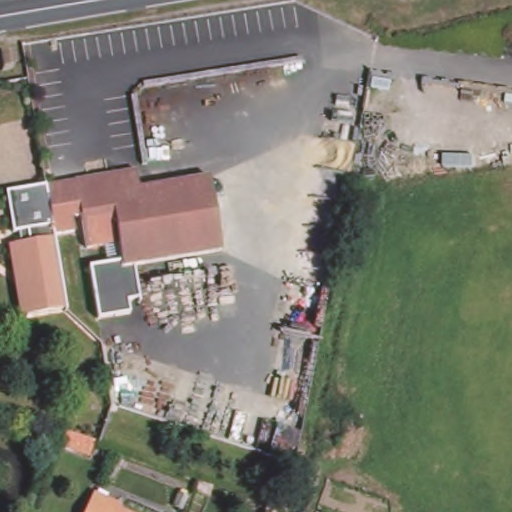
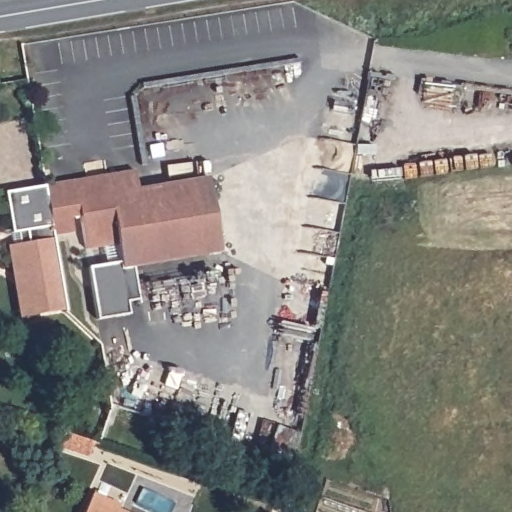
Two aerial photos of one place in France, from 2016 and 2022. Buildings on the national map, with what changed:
unchanged [(124,262),(121,246),(87,252),(76,180),(138,169),(143,186),(213,176),(224,253),(136,268),(124,270),(124,262)]
unchanged [(51,194),(53,217),(54,223),(54,226),(54,236),(56,264),(60,310),(60,318),(21,321),(15,249),(21,248),(20,237),(14,237),(11,196),(51,192),(51,194)]
unchanged [(124,270),(136,268),(142,300),(130,302),(133,314),(98,318),(90,267),(124,262),(124,270)]
unchanged [(66,439),(94,449),(89,463),(61,453),(66,439)]
unchanged [(124,503),(122,509),(128,512),(88,512),(95,493),(124,503)]

